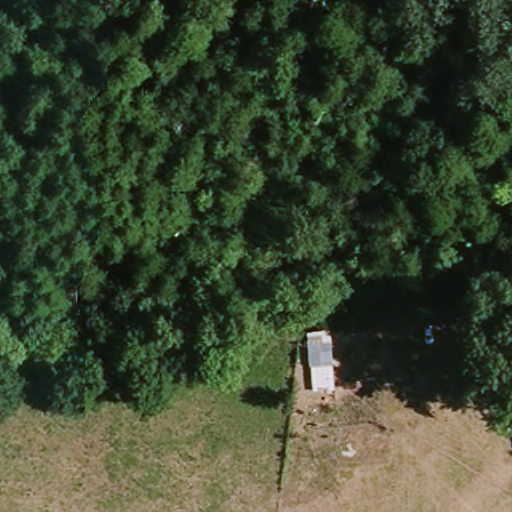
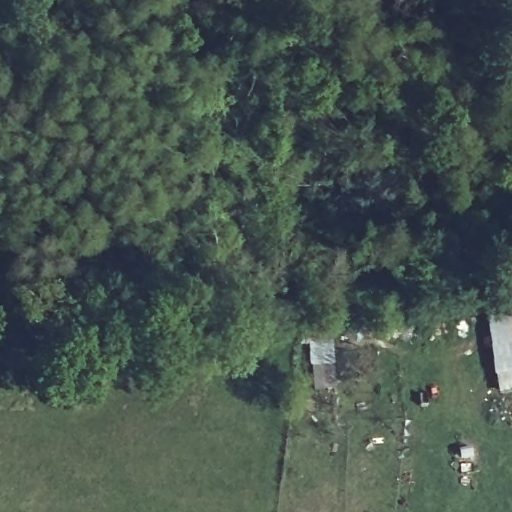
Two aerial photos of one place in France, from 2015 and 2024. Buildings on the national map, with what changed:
new [(496,375),(494,376),(487,320),(512,316),(512,393),(499,395),(496,375)]
unchanged [(305,344),(328,344),(330,367),(307,369),(305,344)]

